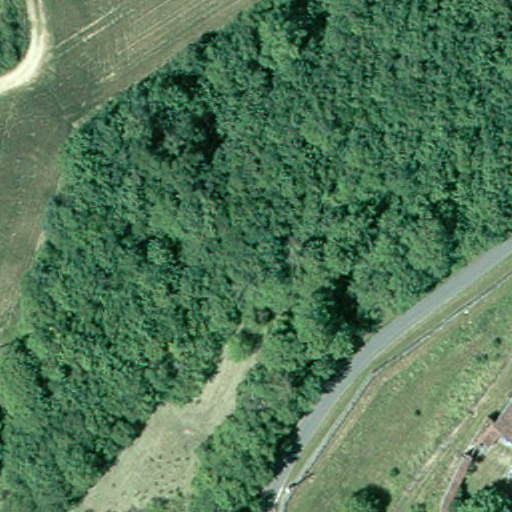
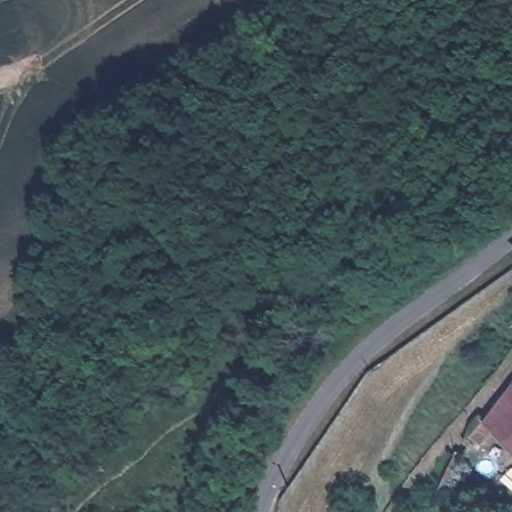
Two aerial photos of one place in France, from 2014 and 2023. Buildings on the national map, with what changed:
unchanged [(512,387),(512,441),(488,419),(512,387)]
unchanged [(482,442),(472,435),(481,422),(491,429),(482,442)]

